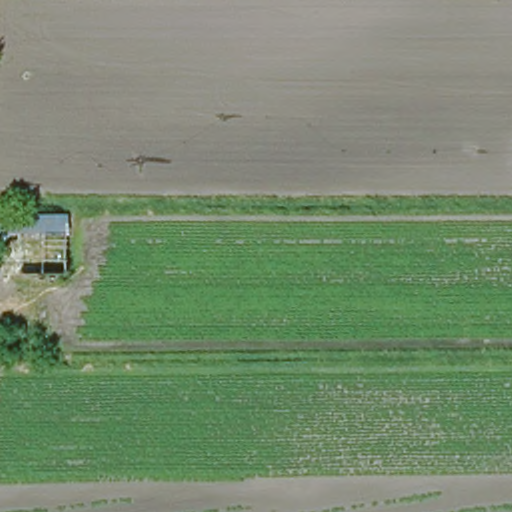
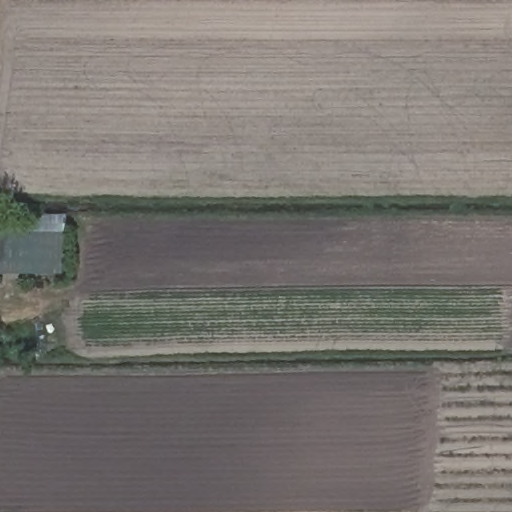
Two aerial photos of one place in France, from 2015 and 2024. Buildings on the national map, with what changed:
unchanged [(0,265),(0,210),(47,210),(47,255),(46,267),(0,265)]

